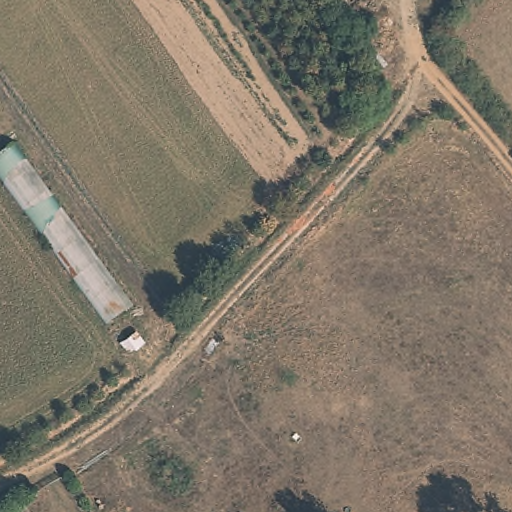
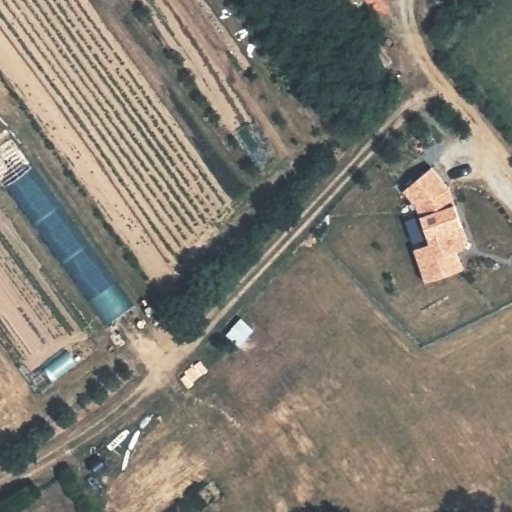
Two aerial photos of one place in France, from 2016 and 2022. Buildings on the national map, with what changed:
unchanged [(110,325),(0,179),(0,152),(13,142),(133,307),(110,325)]
new [(432,167),(456,203),(464,224),(462,225),(467,239),(462,250),(457,251),(463,268),(424,282),(413,249),(428,242),(420,216),(417,207),(402,191),(432,167)]

